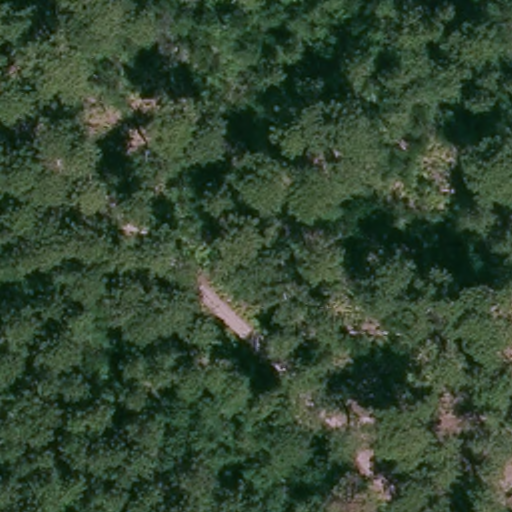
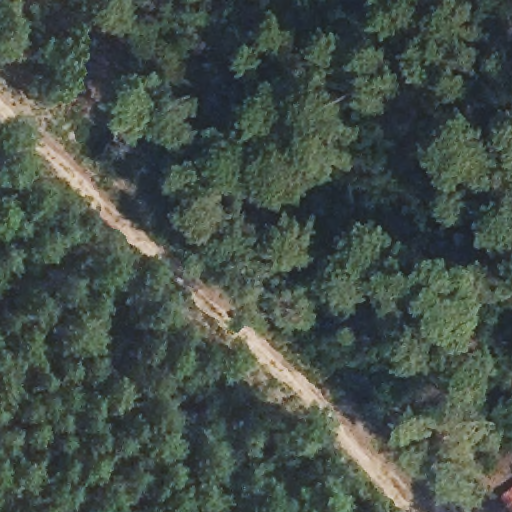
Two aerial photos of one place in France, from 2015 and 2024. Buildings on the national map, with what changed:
unchanged [(511,512),(502,498),(512,489),(512,512),(511,512)]

